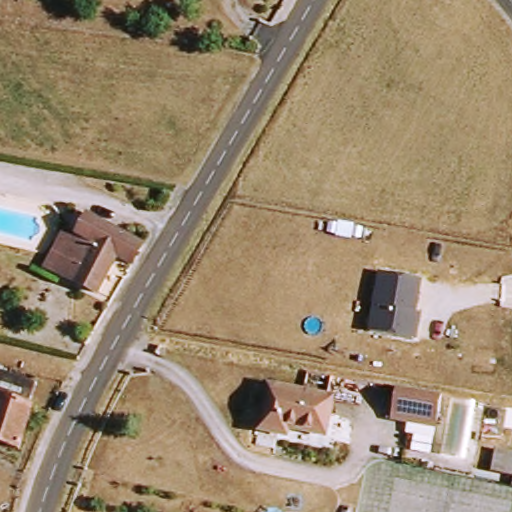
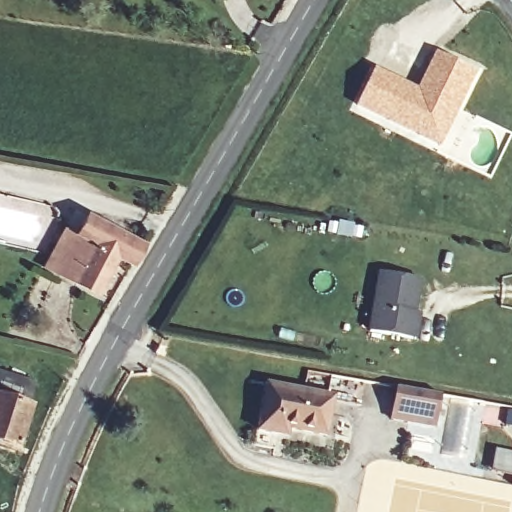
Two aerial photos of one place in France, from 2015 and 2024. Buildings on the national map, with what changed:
new [(355,105),(375,67),(419,89),(436,52),(476,72),(440,147),(355,105)]
unchanged [(114,258),(96,293),(57,271),(88,214),(148,246),(135,269),(114,258)]
unchanged [(420,278),(415,311),(421,312),(417,335),(372,327),(382,272),(420,278)]
unchanged [(39,381),(35,400),(34,407),(37,408),(23,453),(0,446),(0,372),(39,381)]
unchanged [(283,435),(261,431),(268,387),(335,400),(330,436),(285,429),(283,435)]
unchanged [(443,399),(437,431),(395,423),(401,389),(443,399)]
demolished [(462,465),(448,462),(457,412),(472,416),(462,465)]
unchanged [(512,472),(491,470),(496,445),(512,448),(512,472)]

